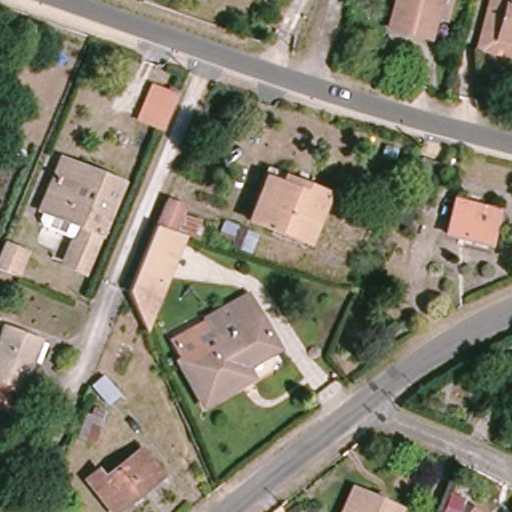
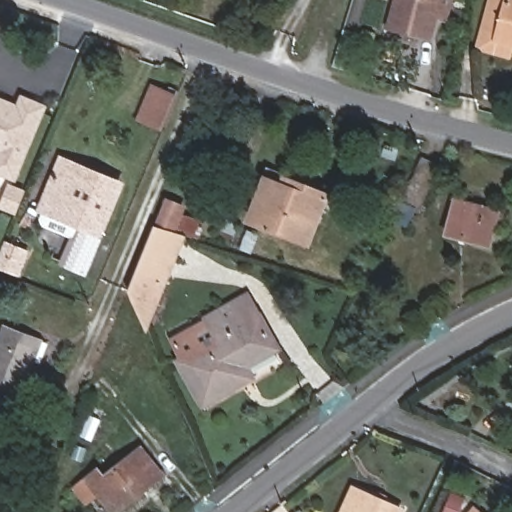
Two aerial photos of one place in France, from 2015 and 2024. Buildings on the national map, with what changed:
unchanged [(397,0),(440,0),(431,38),(390,28),(397,0)]
unchanged [(493,0),(512,0),(512,44),(509,55),(495,51),(480,48),(493,0)]
unchanged [(162,133),(135,121),(150,84),(178,94),(162,133)]
new [(20,95),(47,106),(15,182),(0,175),(0,97),(16,104),(20,95)]
unchanged [(207,170),(185,164),(190,149),(212,156),(207,170)]
unchanged [(396,222),(404,203),(422,158),(440,165),(421,210),(415,208),(408,227),(396,222)]
unchanged [(37,223),(43,209),(59,171),(62,162),(101,178),(120,186),(100,233),(84,270),(66,263),(81,225),(75,239),(37,223)]
unchanged [(328,196),(309,243),(251,220),(269,174),(328,196)]
unchanged [(129,293),(156,227),(167,200),(187,209),(177,233),(184,234),(144,328),(129,293)]
unchanged [(456,200),(500,212),(491,247),(447,235),(456,200)]
unchanged [(227,248),(234,229),(257,234),(250,256),(227,248)]
unchanged [(0,269),(0,256),(6,241),(32,253),(20,278),(0,269)]
unchanged [(242,384),(205,406),(199,396),(180,363),(170,344),(209,322),(208,319),(247,297),(278,349),(246,369),(252,379),(242,384)]
unchanged [(44,340),(15,418),(0,412),(0,335),(4,325),(44,340)]
unchanged [(136,347),(124,377),(109,371),(122,342),(122,340),(136,347)]
unchanged [(121,393),(108,404),(93,389),(105,377),(121,393)]
unchanged [(53,445),(32,498),(12,489),(32,437),(53,445)]
unchanged [(142,449),(163,476),(117,512),(113,512),(87,480),(98,471),(104,479),(142,449)]
unchanged [(353,486),(402,508),(401,512),(341,512),(353,486)]

